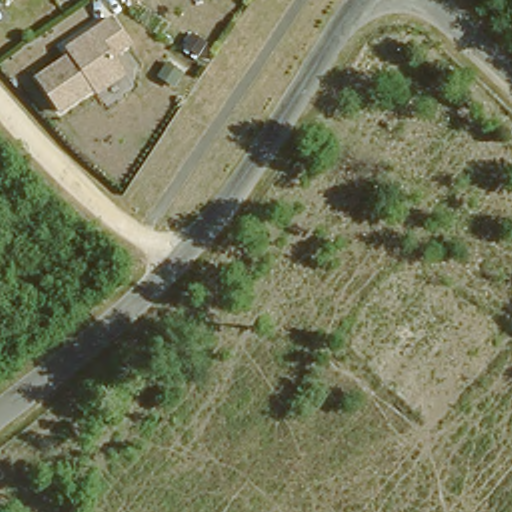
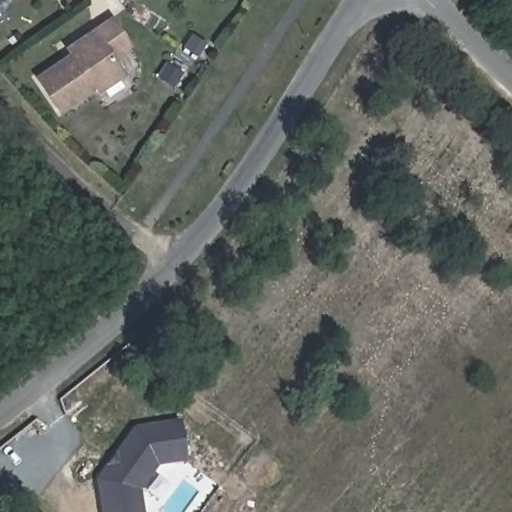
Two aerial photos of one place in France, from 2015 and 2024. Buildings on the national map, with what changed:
unchanged [(66,61),(69,66),(76,61),(69,51),(114,22),(132,48),(114,60),(126,78),(99,96),(95,91),(61,114),(39,80),(66,61)]
new [(142,512),(99,512),(94,480),(133,428),(179,421),(185,463),(156,467),(139,491),(142,512)]

